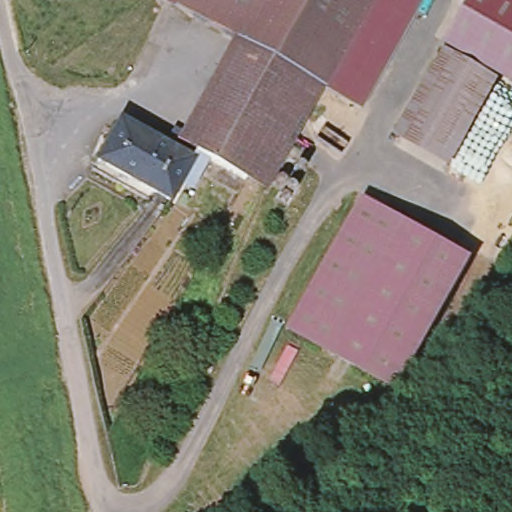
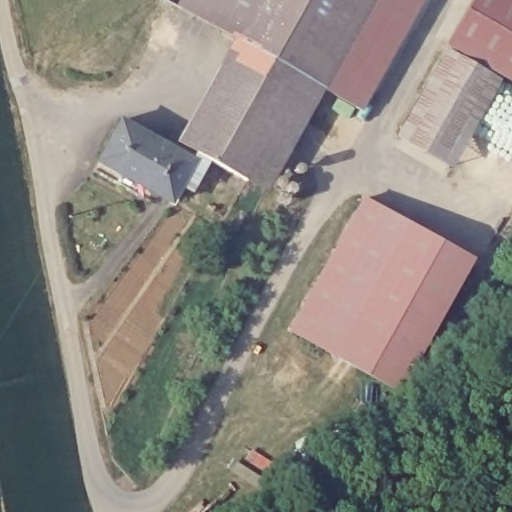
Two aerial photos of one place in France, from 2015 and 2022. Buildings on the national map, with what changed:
unchanged [(300,75),(248,46),(180,8),(165,0),(367,0),(319,85),(300,75)]
unchanged [(319,85),(367,0),(413,0),(353,105),(319,85)]
unchanged [(443,39),(466,0),(512,0),(512,82),(443,39)]
unchanged [(242,179),(191,149),(248,46),(300,75),(319,85),(271,172),(260,190),(242,179)]
unchanged [(497,76),(448,164),(400,138),(450,47),(497,76)]
unchanged [(185,158),(165,195),(95,156),(117,119),(185,158)]
unchanged [(475,256),(397,388),(288,324),(366,192),(475,256)]

